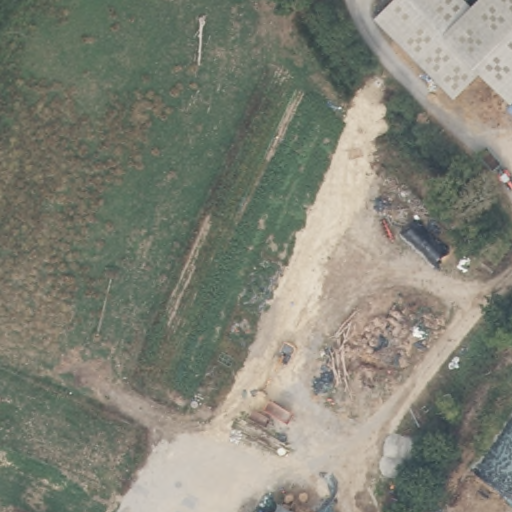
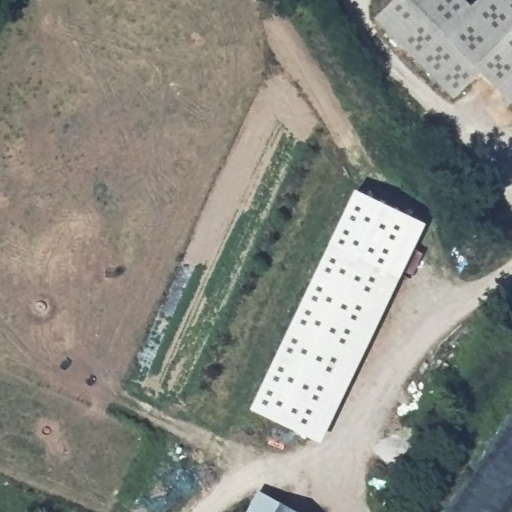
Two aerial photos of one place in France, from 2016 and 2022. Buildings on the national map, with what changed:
unchanged [(466,0),(471,5),(477,0),(512,0),(512,96),(508,100),(477,74),(451,99),(372,17),(390,0),(466,0)]
new [(329,242),(400,277),(322,442),(251,408),(329,242)]
unchanged [(294,512),(271,512),(276,502),(294,512)]

